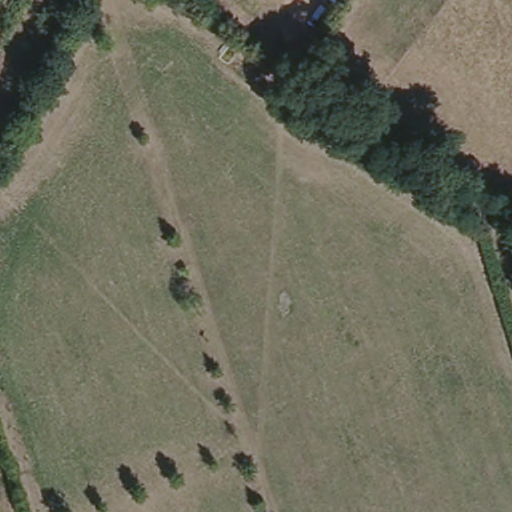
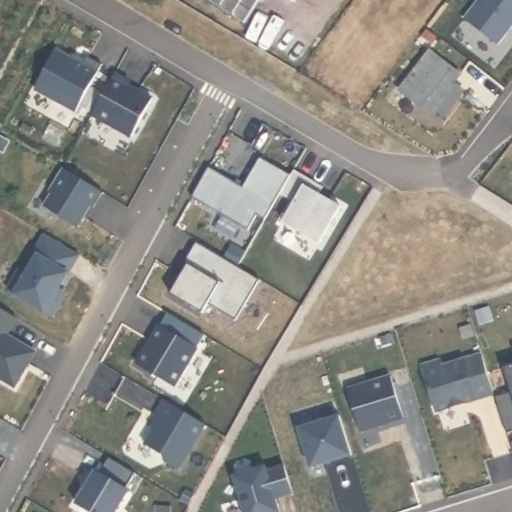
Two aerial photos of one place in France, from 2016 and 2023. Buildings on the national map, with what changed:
new [(244,25),(207,1),(207,0),(258,0),(244,25)]
new [(36,90),(57,48),(84,63),(88,55),(102,65),(76,114),(36,90)]
new [(132,80),(131,85),(154,97),(132,137),(93,116),(116,72),(132,80)]
new [(244,187),(262,158),(290,174),(293,170),(324,187),(320,194),(343,207),(325,245),(283,222),(295,201),(279,195),(266,218),(258,215),(250,227),(194,197),(210,169),(244,187)]
new [(104,194),(95,208),(92,206),(79,226),(45,205),(52,192),(49,190),(61,168),(104,194)]
new [(211,302),(204,311),(171,292),(187,263),(196,244),(258,278),(235,320),(211,302)]
new [(9,335),(36,352),(16,387),(0,378),(0,309),(19,320),(9,335)]
new [(199,348),(176,388),(137,365),(159,326),(199,348)]
new [(493,395),(435,414),(422,365),(441,360),(442,364),(482,353),(493,395)]
new [(507,366),(512,365),(512,390),(507,366)]
new [(404,419),(361,433),(346,390),(392,375),(404,419)]
new [(497,395),(512,390),(512,432),(508,433),(497,395)]
new [(162,458),(166,451),(145,441),(166,402),(206,425),(181,470),(162,458)]
new [(359,460),(308,475),(293,425),(343,410),(359,460)]
new [(97,470),(103,473),(110,459),(138,474),(128,489),(114,512),(89,512),(76,505),(97,470)]
new [(267,465),(284,462),(294,496),(277,499),(280,512),(245,512),(236,473),(267,465)]

